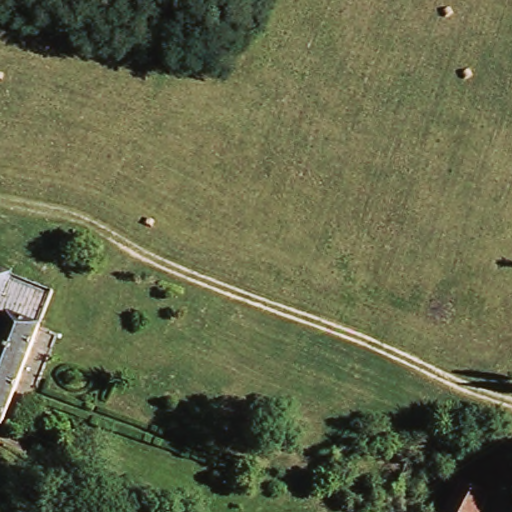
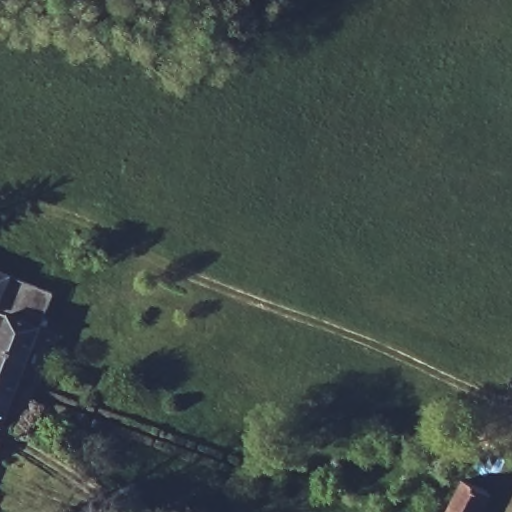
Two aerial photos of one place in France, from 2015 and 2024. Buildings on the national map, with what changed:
unchanged [(0,326),(6,312),(0,310),(0,271),(54,293),(42,321),(0,425),(0,326)]
unchanged [(478,512),(448,512),(461,485),(486,496),(482,503),(478,512)]

